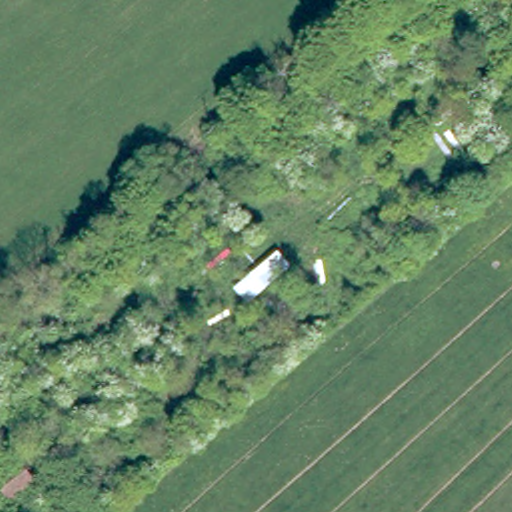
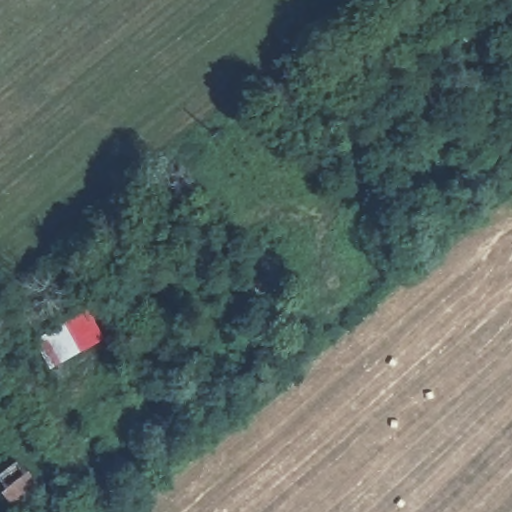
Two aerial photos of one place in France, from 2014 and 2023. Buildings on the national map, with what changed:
unchanged [(0,473),(0,471),(27,453),(45,480),(19,499),(0,473)]

